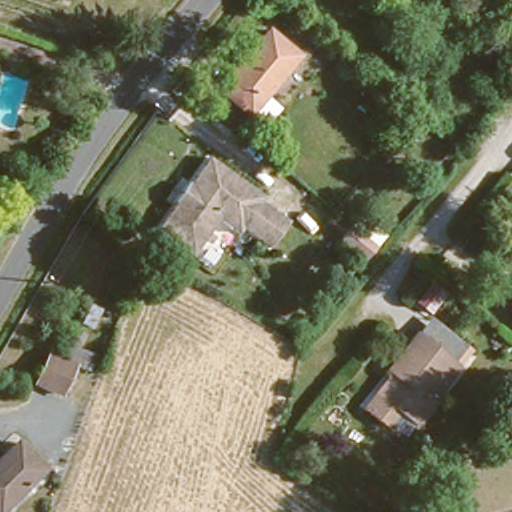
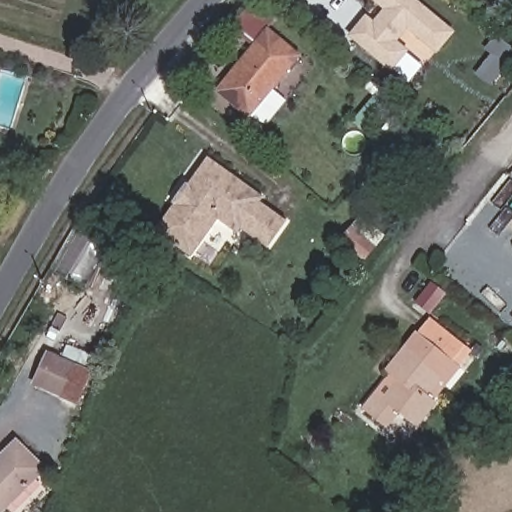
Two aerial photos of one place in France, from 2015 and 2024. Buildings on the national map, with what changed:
new [(372,21),(382,9),(372,0),(417,0),(455,32),(437,54),(407,26),(396,40),(408,51),(392,71),(348,35),(365,15),(372,21)]
unchanged [(502,20),(501,20),(494,17),(499,5),(512,10),(512,26),(507,23),(502,20)]
unchanged [(497,31),(512,45),(512,46),(497,64),(481,50),(497,31)]
unchanged [(222,92),(266,37),(293,57),(250,111),(222,92)]
unchanged [(265,190),(261,197),(287,217),(269,242),(220,206),(189,252),(149,227),(203,152),(265,190)]
unchanged [(430,311),(465,341),(448,360),(416,333),(415,332),(430,311)]
unchanged [(418,397),(427,404),(408,427),(391,413),(377,430),(353,407),(370,388),(375,392),(387,378),(382,373),(392,361),(396,364),(405,353),(401,349),(415,332),(416,333),(448,360),(418,397)]
unchanged [(45,347),(61,351),(71,340),(94,352),(86,372),(72,368),(59,395),(30,386),(45,347)]
unchanged [(0,506),(0,455),(19,435),(45,458),(1,506),(0,506)]

